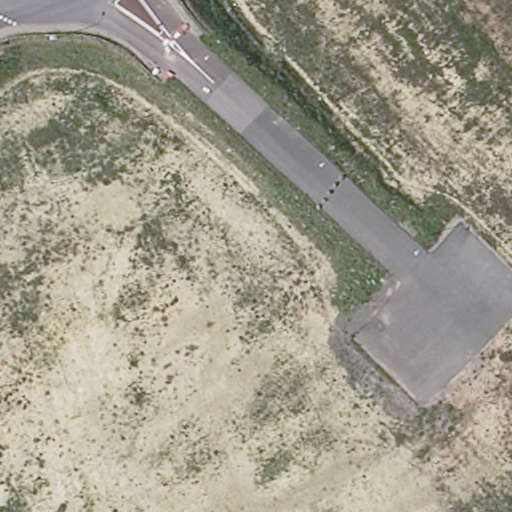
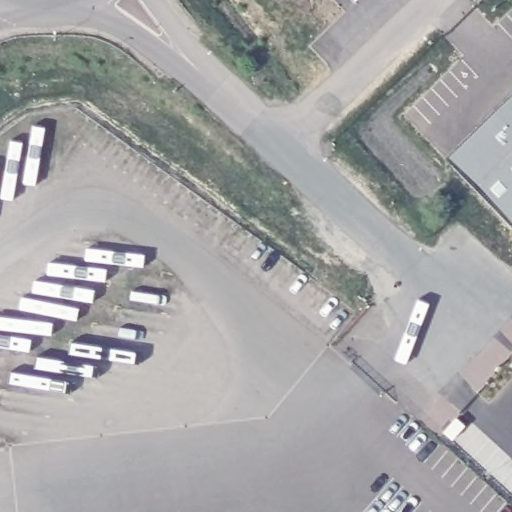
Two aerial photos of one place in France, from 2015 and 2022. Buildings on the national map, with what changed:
new [(512,92),(512,226),(445,156),(512,92)]

